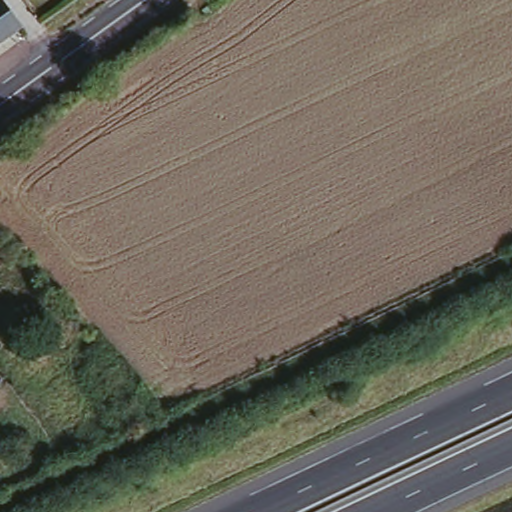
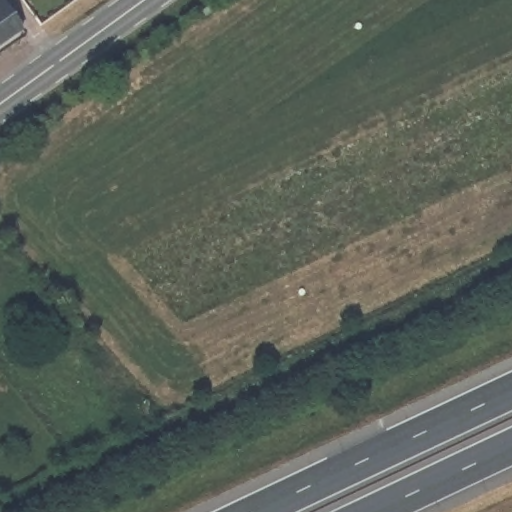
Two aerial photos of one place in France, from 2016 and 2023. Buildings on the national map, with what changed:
unchanged [(0,0),(11,0),(27,23),(0,42),(0,0)]

